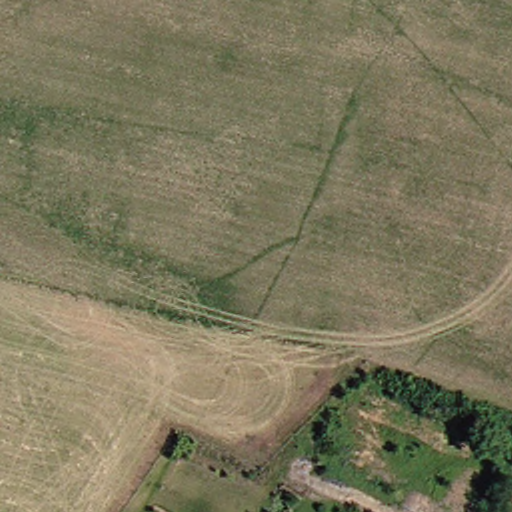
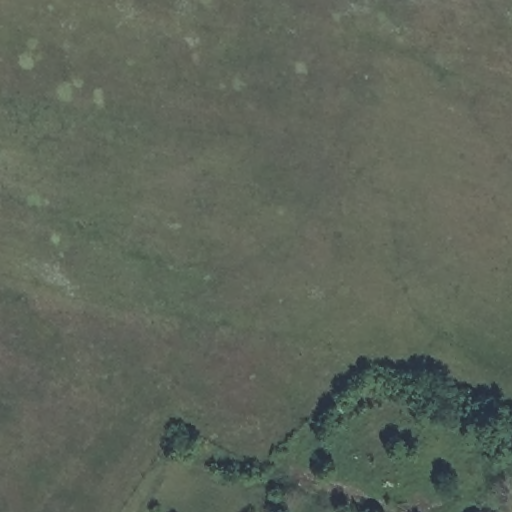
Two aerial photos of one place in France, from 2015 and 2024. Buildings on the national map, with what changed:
unchanged [(474,512),(450,512),(456,499),(475,508),(474,512)]

